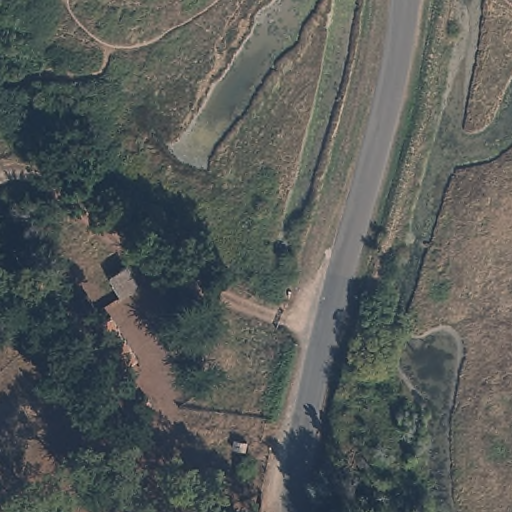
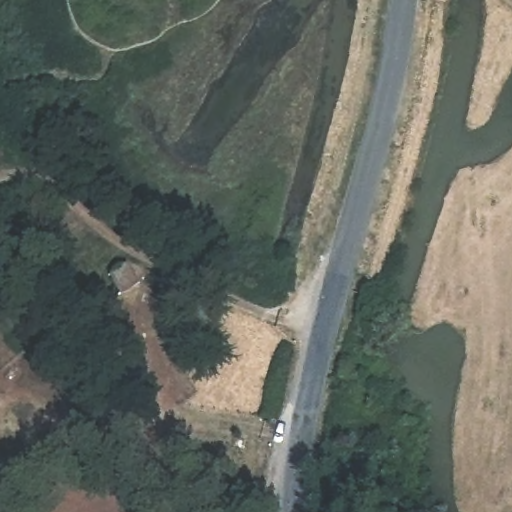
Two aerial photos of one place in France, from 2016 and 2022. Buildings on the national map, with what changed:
unchanged [(68,271),(95,255),(99,261),(106,256),(110,261),(116,270),(121,266),(134,285),(91,311),(78,289),(68,271)]
unchanged [(101,318),(110,332),(98,338),(90,325),(101,318)]
unchanged [(120,343),(136,369),(124,377),(107,350),(120,343)]

